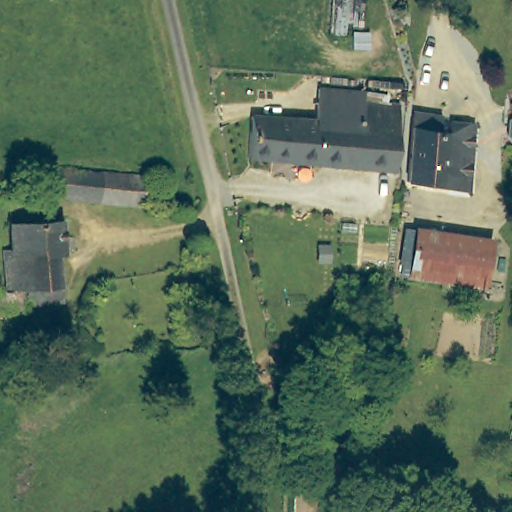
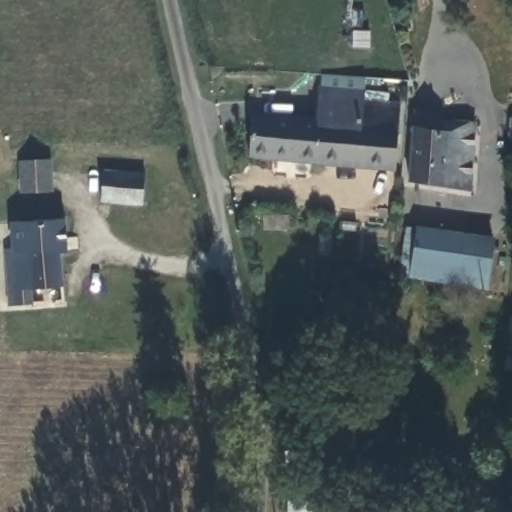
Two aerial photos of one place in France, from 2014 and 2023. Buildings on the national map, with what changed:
unchanged [(318,121),(322,89),(363,94),(363,101),(399,106),(394,171),(250,157),(254,114),(318,121)]
unchanged [(447,119),(446,129),(455,130),(457,121),(480,124),(471,190),(409,180),(414,114),(447,119)]
new [(53,192),(19,193),(18,161),(53,160),(53,192)]
unchanged [(107,170),(148,175),(147,203),(106,199),(107,170)]
unchanged [(9,291),(7,254),(13,252),(13,223),(63,221),(65,252),(57,254),(64,301),(8,305),(9,291)]
unchanged [(423,228),(496,239),(488,288),(417,278),(423,228)]

